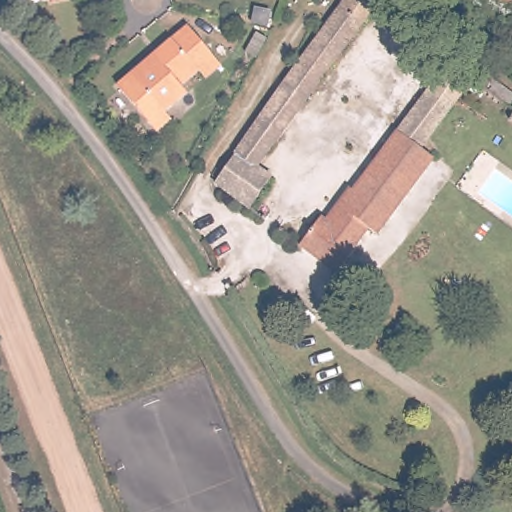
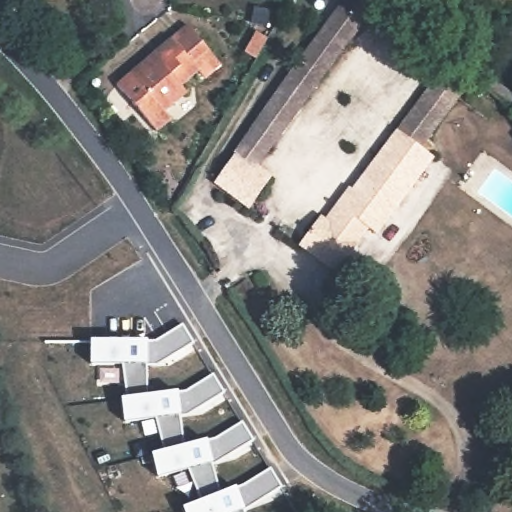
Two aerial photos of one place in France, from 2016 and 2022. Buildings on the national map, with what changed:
unchanged [(374,24),(370,20),(260,169),(275,181),(252,212),(217,185),(260,124),(285,89),(306,59),(300,52),(309,34),(318,41),(346,3),(342,0),(364,0),(382,13),(374,24)]
unchanged [(142,68),(166,45),(163,42),(194,16),(215,40),(200,54),(207,61),(192,74),(198,82),(174,103),(181,111),(167,124),(126,78),(140,65),(142,68)]
unchanged [(473,82),(424,151),(437,163),(377,238),(367,230),(357,242),(361,246),(337,276),(301,246),(323,216),(330,220),(399,133),(402,134),(452,66),(473,82)]
new [(245,511),(245,512),(183,512),(182,509),(200,500),(187,470),(157,478),(151,454),(164,451),(156,419),(124,423),(119,398),(126,398),(120,365),(90,365),(89,341),(155,341),(182,325),(192,344),(157,367),(147,367),(147,393),(186,391),(213,374),(225,394),(187,417),(179,417),(182,444),(215,439),(242,421),(254,441),(212,466),(219,493),(242,485),(270,468),(282,487),(245,511)]

